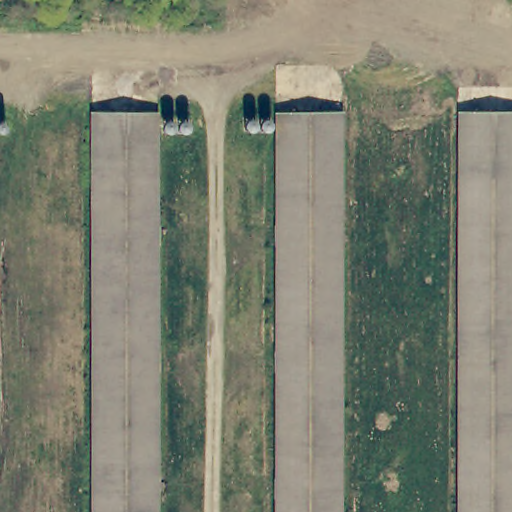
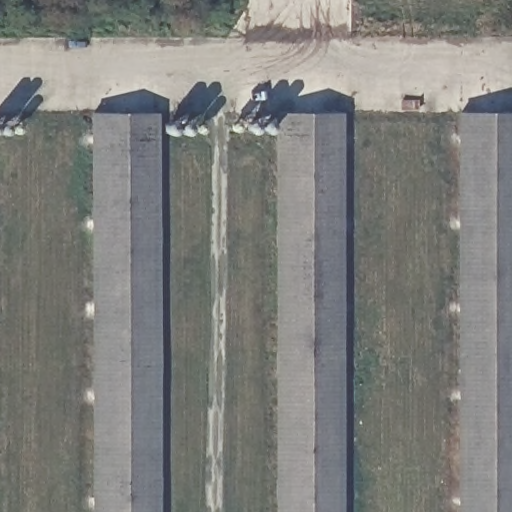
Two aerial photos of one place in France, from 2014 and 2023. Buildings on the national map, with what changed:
unchanged [(156,512),(94,512),(96,112),(159,112),(156,512)]
unchanged [(334,512),(273,512),(276,112),(337,112),(334,512)]
unchanged [(459,113),(512,114),(512,512),(455,512),(459,113)]

